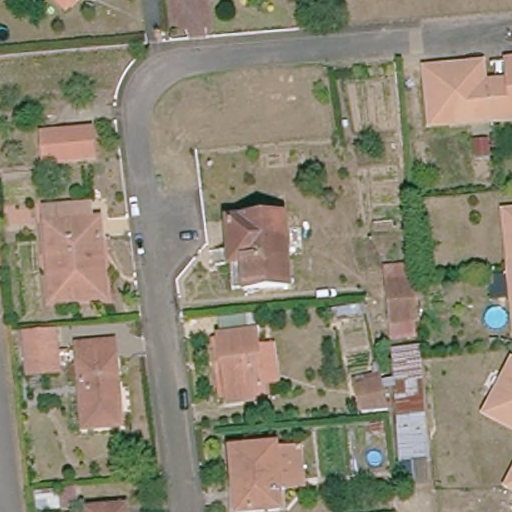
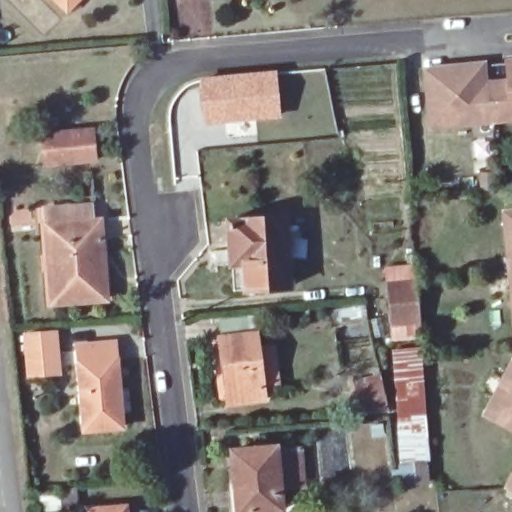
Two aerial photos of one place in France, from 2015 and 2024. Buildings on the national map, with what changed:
unchanged [(57,0),(77,0),(67,10),(57,0)]
unchanged [(512,62),(512,77),(510,62),(512,62)]
unchanged [(477,114),(478,120),(435,124),(430,69),(447,68),(448,73),(470,70),(469,66),(485,64),(487,80),(491,79),(492,84),(512,82),(512,117),(495,119),(495,113),(477,114)]
new [(276,69),(281,118),(202,125),(198,77),(276,69)]
unchanged [(42,134),(92,128),(95,158),(45,164),(42,134)]
unchanged [(46,207),(90,204),(92,220),(100,219),(105,297),(52,301),(46,207)]
unchanged [(512,289),(510,272),(504,272),(503,252),(499,213),(512,212),(512,289)]
unchanged [(236,263),(234,219),(289,216),(293,286),(250,288),(238,289),(236,263)]
unchanged [(392,325),(388,284),(415,282),(419,322),(392,325)]
unchanged [(506,290),(512,289),(512,333),(510,333),(506,290)]
unchanged [(277,344),(282,383),(266,385),(267,398),(231,402),(224,336),(228,336),(226,318),(258,315),(260,332),(261,346),(277,344)]
unchanged [(42,373),(27,375),(23,335),(53,332),(56,352),(58,372),(42,373)]
unchanged [(113,341),(121,425),(85,429),(76,345),(113,341)]
unchanged [(396,402),(394,371),(393,347),(419,345),(428,460),(399,462),(396,402)]
unchanged [(360,406),(358,375),(394,371),(396,402),(360,406)]
unchanged [(510,380),(512,377),(512,427),(491,416),(510,380)]
unchanged [(232,450),(275,447),(276,449),(300,447),(304,487),(279,489),(280,510),(262,512),(237,512),(232,450)]
unchanged [(512,473),(512,481),(508,479),(512,473)]
unchanged [(126,512),(89,512),(88,510),(125,506),(126,512)]

